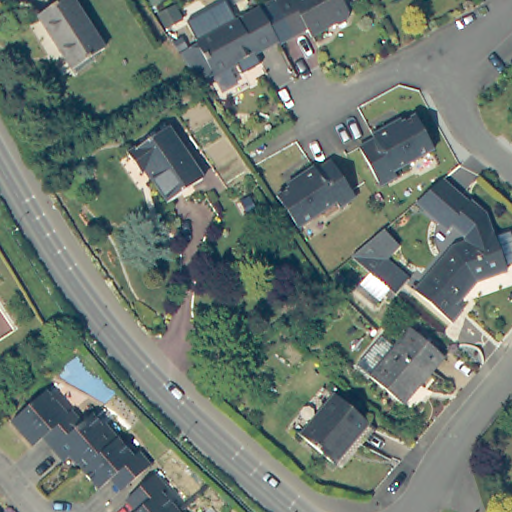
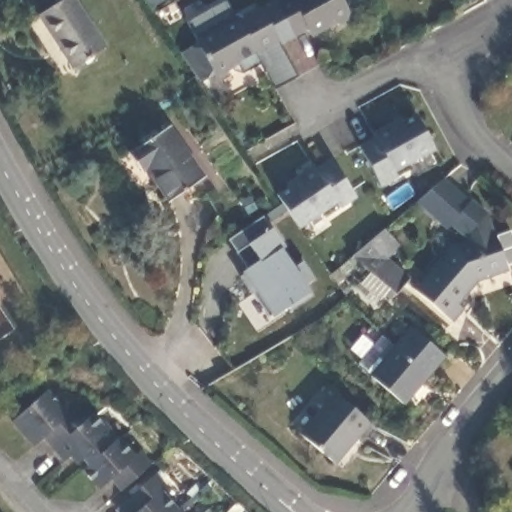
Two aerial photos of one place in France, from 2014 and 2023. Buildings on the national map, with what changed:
unchanged [(103,45),(67,69),(33,15),(56,0),(75,0),(103,45)]
unchanged [(171,53),(187,44),(186,42),(187,41),(177,22),(216,0),(227,20),(250,7),(269,43),(244,57),(241,53),(218,66),(220,69),(205,77),(204,75),(190,83),(171,53)]
unchanged [(264,0),(332,0),(339,14),(337,21),(329,26),(322,24),(318,26),(319,28),(302,38),(298,30),(271,45),(269,43),(250,7),(264,0)]
unchanged [(151,14),(167,5),(174,17),(157,26),(151,14)]
unchanged [(431,149),(389,173),(392,179),(372,189),(351,151),(364,142),(365,138),(382,128),(391,130),(413,117),(431,149)]
unchanged [(206,181),(171,202),(153,173),(145,176),(129,149),(172,123),(206,181)]
unchanged [(355,194),(338,207),(334,203),(296,228),(274,195),(298,181),(296,174),(311,165),(314,168),(333,158),(355,194)]
new [(262,217),(269,229),(272,227),(286,247),(282,250),(294,269),(302,260),(314,278),(307,287),(310,292),(311,297),(291,310),(288,307),(271,318),(240,272),(247,268),(228,239),(262,217)]
unchanged [(395,294),(373,276),(352,259),(386,231),(403,247),(392,259),(410,276),(395,294)]
unchanged [(458,308),(446,317),(412,289),(452,243),(485,232),(489,231),(491,237),(510,232),(512,240),(512,258),(499,261),(501,267),(473,276),(453,299),(458,308)]
unchanged [(444,360),(404,407),(359,367),(380,341),(393,352),(412,333),(444,360)]
unchanged [(42,438),(25,453),(0,429),(37,393),(59,414),(65,411),(78,422),(51,448),(42,438)]
unchanged [(359,450),(351,443),(330,465),(297,436),(332,397),(365,428),(373,433),(359,450)]
unchanged [(87,413),(97,425),(105,427),(113,437),(81,467),(69,457),(57,465),(44,454),(51,448),(78,422),(87,413)]
unchanged [(113,437),(127,453),(132,448),(146,461),(120,486),(112,478),(93,493),(73,475),(81,467),(113,437)]
unchanged [(133,512),(135,509),(126,498),(152,472),(163,482),(159,488),(176,505),(170,512),(133,512)]
unchanged [(183,512),(170,512),(176,505),(183,512)]

